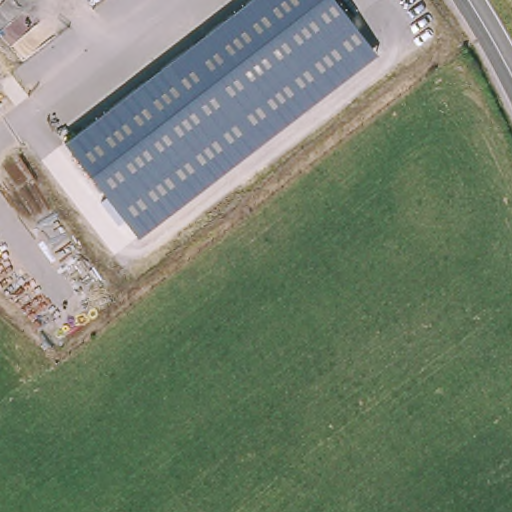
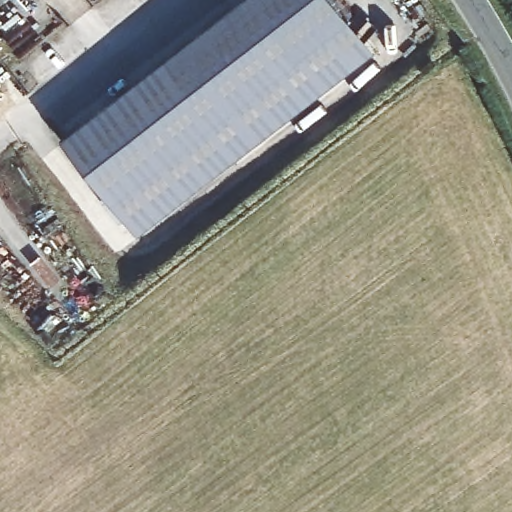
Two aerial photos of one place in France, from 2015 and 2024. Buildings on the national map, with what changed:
unchanged [(376,55),(138,236),(65,141),(244,0),(335,0),(376,55)]

